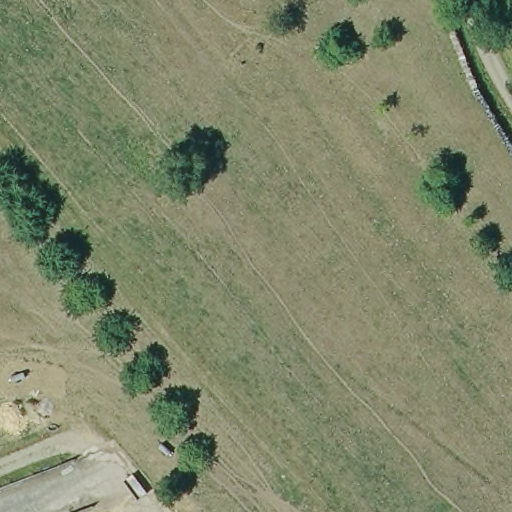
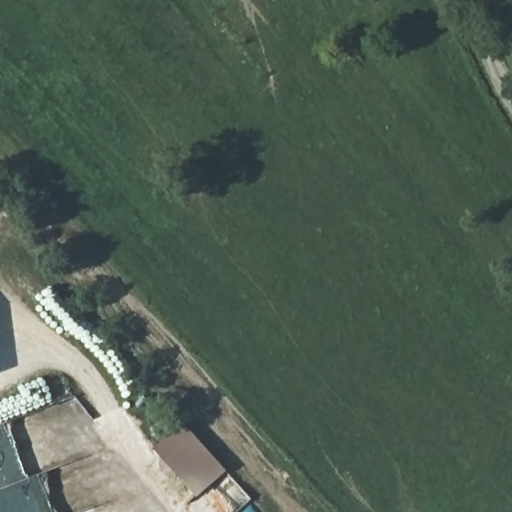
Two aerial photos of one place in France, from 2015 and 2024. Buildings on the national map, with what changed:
new [(154,445),(185,421),(230,471),(197,497),(154,445)]

